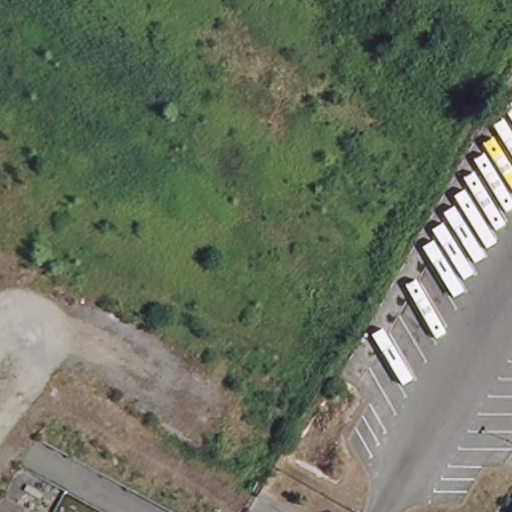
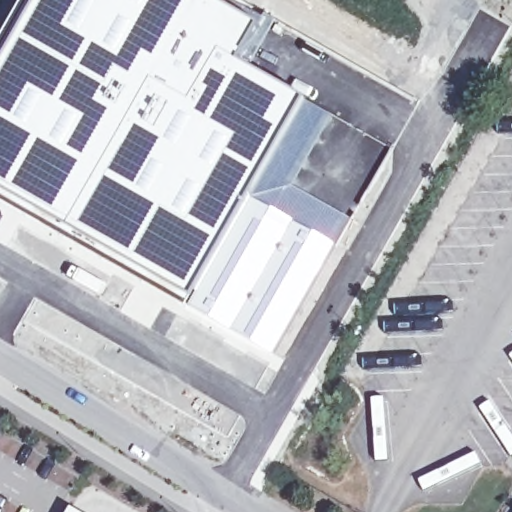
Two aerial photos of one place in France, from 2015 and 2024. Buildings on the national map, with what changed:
new [(216,0),(218,1),(218,0),(221,0),(230,4),(233,0),(235,0),(273,22),(259,43),(241,62),(295,92),(333,115),(293,187),(350,219),(337,245),(316,286),(274,357),(213,323),(168,294),(40,221),(0,200),(0,38),(22,0),(216,0)]

